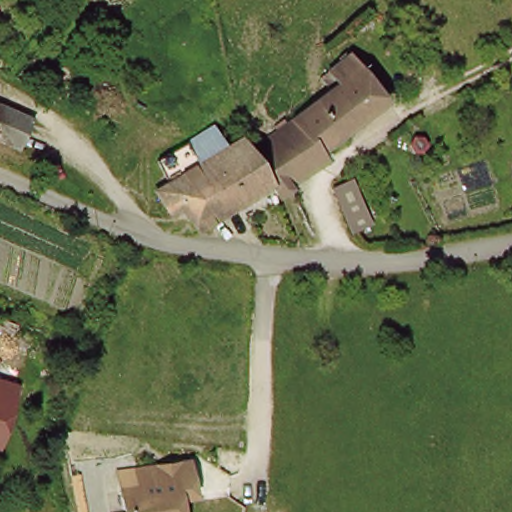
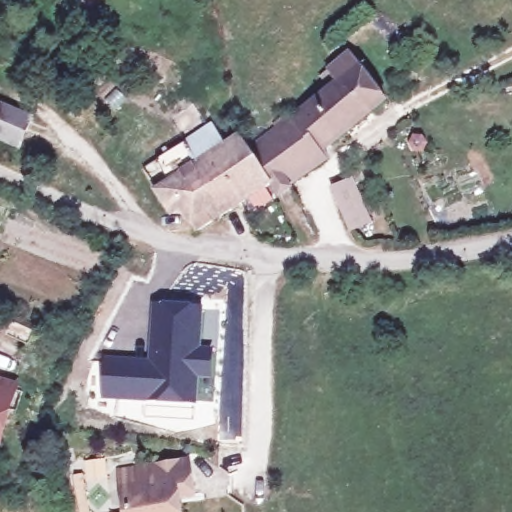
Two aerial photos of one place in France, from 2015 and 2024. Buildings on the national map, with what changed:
unchanged [(327,81),(322,74),(352,51),(392,95),(332,137),(335,149),(288,187),(277,174),(248,146),(327,81)]
unchanged [(10,141),(0,136),(0,98),(28,111),(10,141)]
unchanged [(202,225),(191,209),(180,216),(165,197),(177,190),(162,168),(212,132),(223,144),(237,135),(242,141),(248,146),(277,174),(202,225)]
unchanged [(349,176),(376,212),(358,226),(332,189),(349,176)]
demolished [(127,261),(137,265),(134,275),(123,271),(127,261)]
new [(199,406),(102,400),(105,358),(150,359),(157,303),(205,308),(204,349),(215,349),(214,380),(200,380),(199,406)]
unchanged [(0,434),(0,389),(15,394),(10,411),(8,410),(0,434)]
unchanged [(122,482),(140,481),(137,463),(152,462),(189,460),(190,493),(174,494),(176,512),(124,512),(122,482)]

